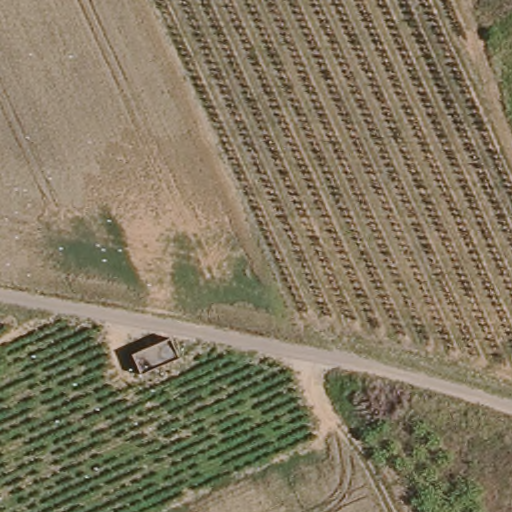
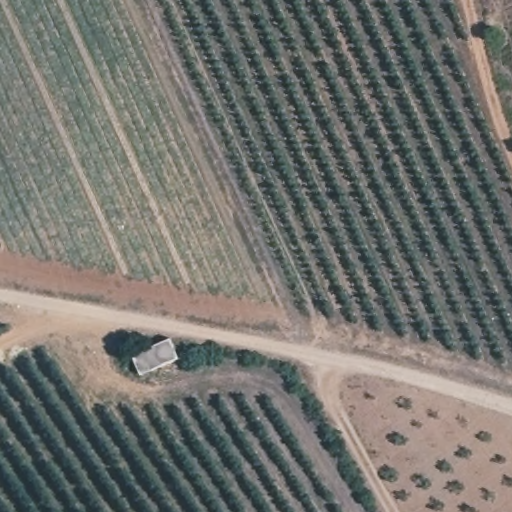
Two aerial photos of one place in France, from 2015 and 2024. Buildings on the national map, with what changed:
unchanged [(174,362),(137,378),(127,353),(163,337),(174,362)]

